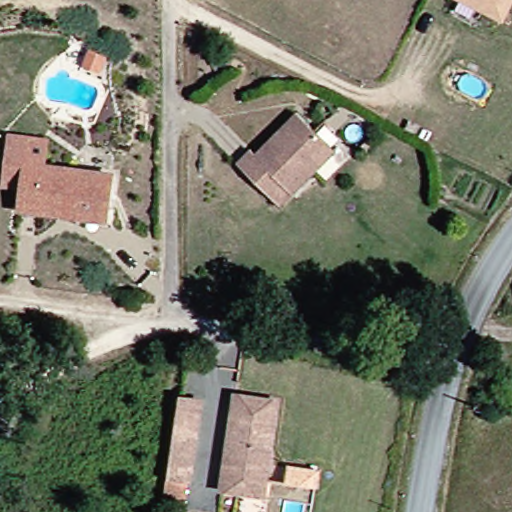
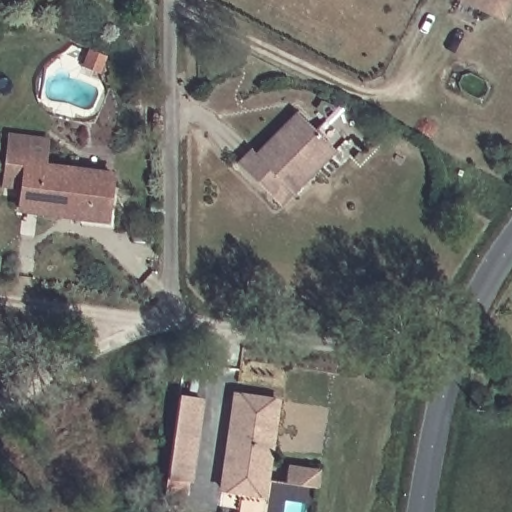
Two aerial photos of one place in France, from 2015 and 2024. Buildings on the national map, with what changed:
unchanged [(454,1),(455,0),(512,0),(512,1),(507,15),(504,21),(454,1)]
unchanged [(279,195),(245,157),(259,144),(265,150),(304,109),(342,150),(299,189),(285,202),(279,195)]
unchanged [(54,134),(51,161),(120,168),(115,219),(115,225),(74,224),(74,217),(21,212),(23,185),(5,184),(9,130),(54,134)]
unchanged [(224,489),(225,473),(237,392),(279,397),(269,479),(267,494),(224,489)]
unchanged [(209,396),(200,476),(177,474),(187,394),(209,396)]

